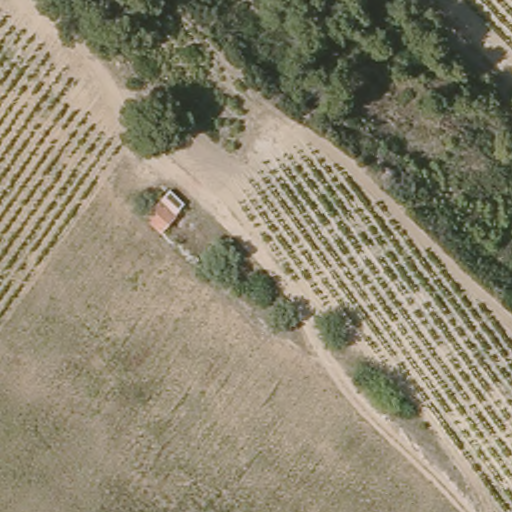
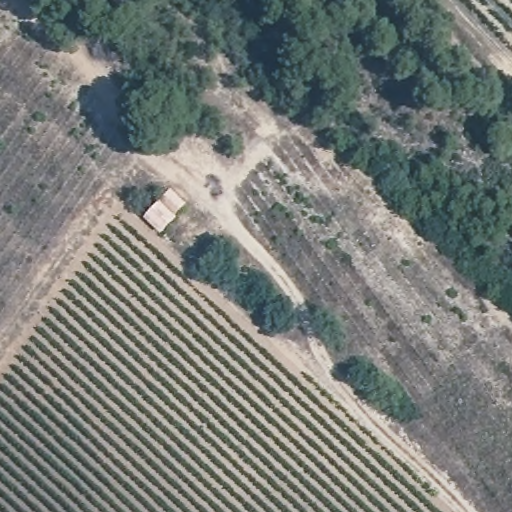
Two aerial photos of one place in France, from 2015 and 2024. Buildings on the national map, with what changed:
unchanged [(168,190),(187,206),(164,233),(145,218),(168,190)]

